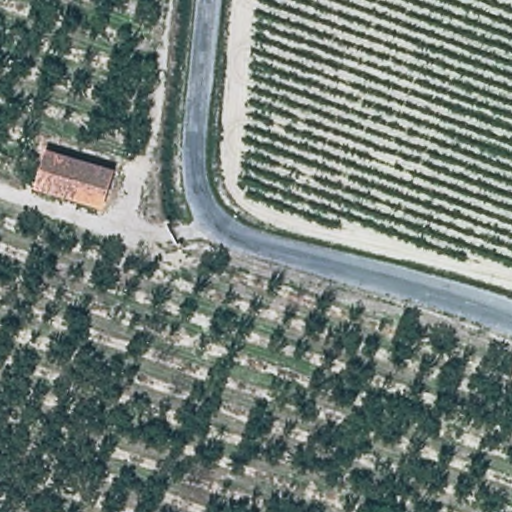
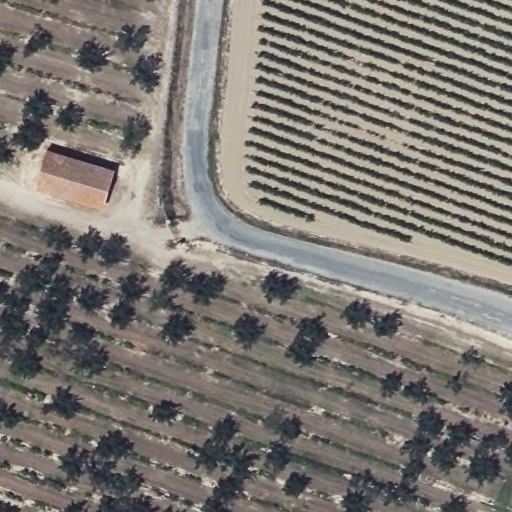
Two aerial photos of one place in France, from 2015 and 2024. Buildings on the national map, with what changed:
unchanged [(45,141),(112,160),(102,199),(36,179),(45,141)]

